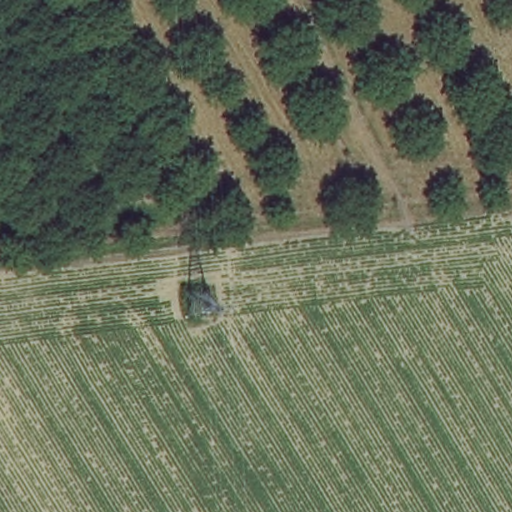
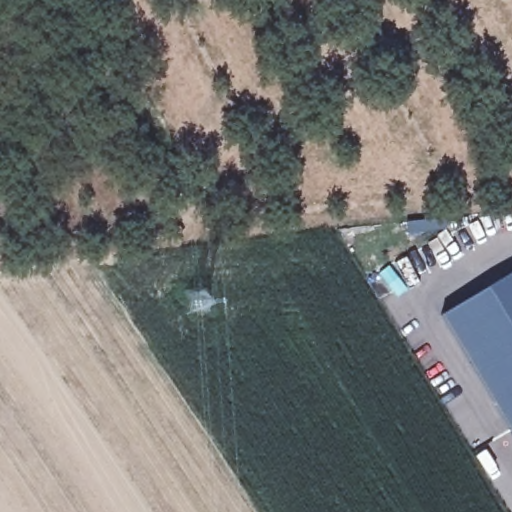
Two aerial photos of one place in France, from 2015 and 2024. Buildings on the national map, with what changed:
new [(442,214),(445,227),(406,236),(403,221),(442,214)]
new [(512,435),(440,315),(512,270),(512,435)]

